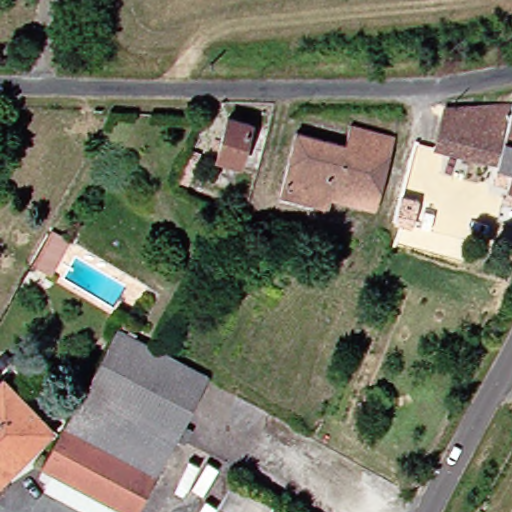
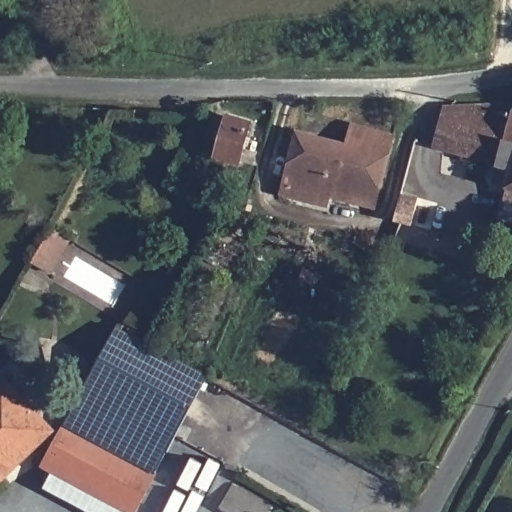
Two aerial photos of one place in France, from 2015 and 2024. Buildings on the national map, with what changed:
unchanged [(444,149),(453,109),(512,105),(512,165),(444,149)]
unchanged [(255,124),(245,160),(228,155),(238,120),(255,124)]
unchanged [(286,205),(288,195),(304,130),(355,144),(360,124),(403,135),(381,217),(332,206),(330,215),(286,205)]
unchanged [(35,264),(55,227),(75,240),(55,275),(35,264)]
unchanged [(158,345),(215,376),(143,512),(139,512),(53,466),(126,327),(158,345)]
unchanged [(0,462),(0,391),(12,379),(62,430),(41,450),(8,481),(0,472),(0,462)]
unchanged [(275,508),(273,512),(232,512),(225,507),(237,485),(275,508)]

